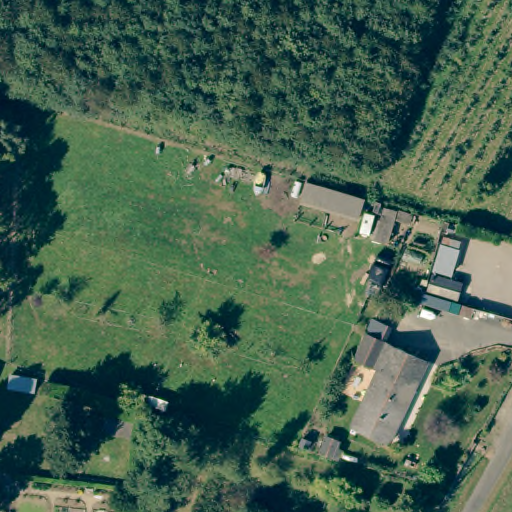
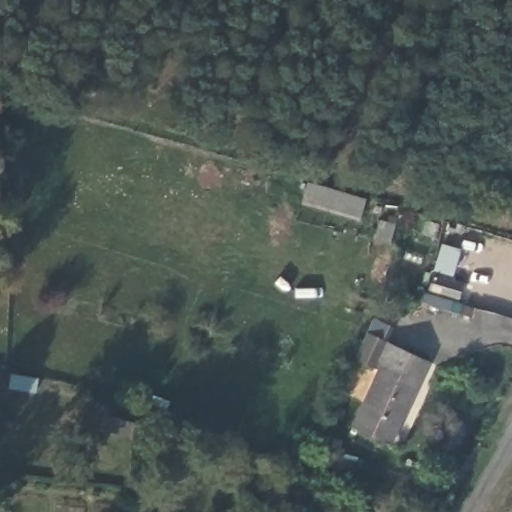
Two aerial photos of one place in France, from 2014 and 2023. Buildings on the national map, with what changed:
unchanged [(336,212),(298,201),(302,184),(340,196),(360,201),(355,218),(336,212)]
unchanged [(460,252),(452,280),(432,275),(440,247),(460,252)]
unchanged [(460,305),(432,298),(437,281),(464,288),(460,305)]
unchanged [(390,443),(355,429),(376,370),(370,367),(349,360),(358,333),(364,319),(383,326),(380,338),(423,357),(390,443)]

